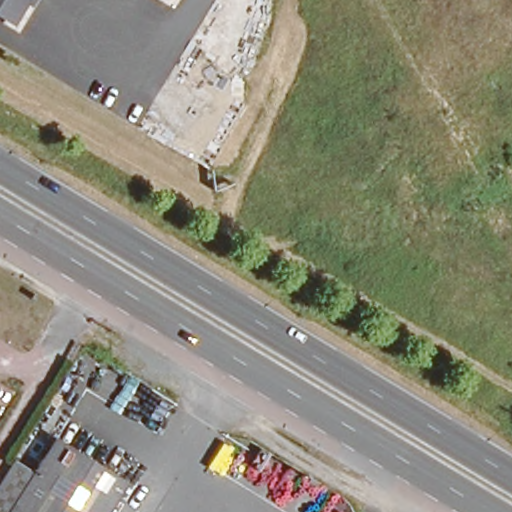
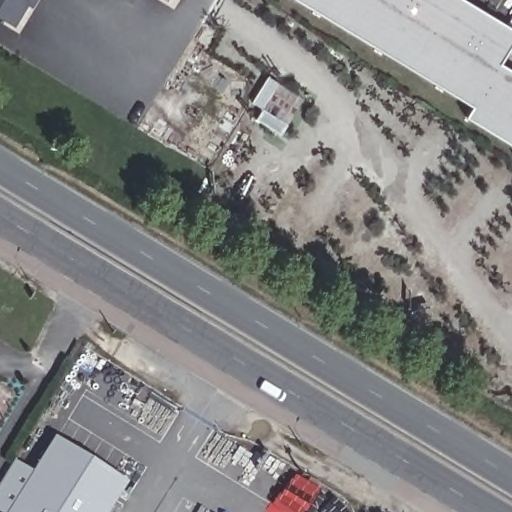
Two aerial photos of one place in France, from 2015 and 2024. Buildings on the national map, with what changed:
unchanged [(35,10),(28,7),(16,29),(0,19),(0,0),(40,0),(35,10)]
new [(499,63),(512,71),(512,146),(464,117),(470,106),(295,0),(466,0),(512,28),(512,42),(499,63)]
unchanged [(30,471),(53,435),(125,477),(103,512),(0,512),(0,471),(11,455),(30,471)]

